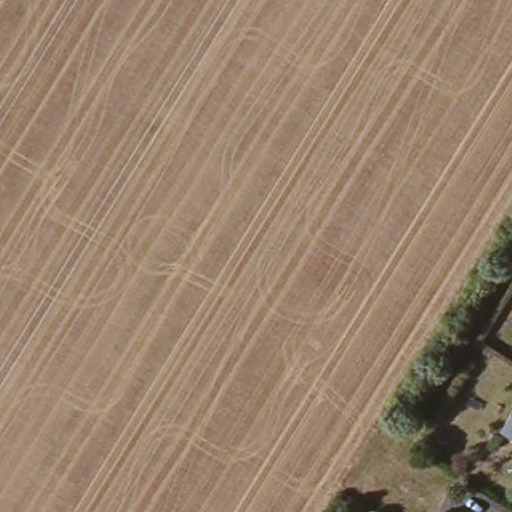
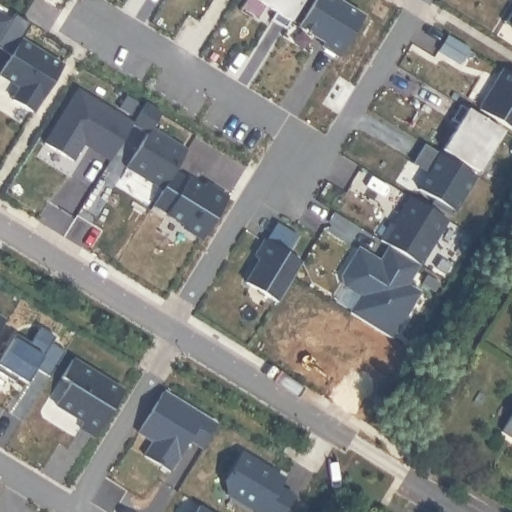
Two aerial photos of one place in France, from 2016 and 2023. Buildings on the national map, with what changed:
new [(285,29),(270,20),(275,12),(254,0),(302,0),(285,29)]
new [(360,16),(334,60),(319,51),(324,42),(296,27),(312,0),(332,0),(360,16)]
new [(502,26),(512,10),(512,32),(502,26)]
new [(0,32),(0,15),(7,20),(0,32)]
new [(32,113),(12,100),(19,88),(0,77),(0,72),(17,41),(60,67),(32,113)]
new [(501,71),(512,78),(512,131),(477,110),(501,71)]
new [(131,125),(107,161),(80,143),(70,160),(42,144),(76,91),(131,125)]
new [(143,103),(157,113),(149,130),(184,151),(170,174),(160,190),(126,169),(146,134),(131,125),(143,103)]
new [(502,132),(476,173),(441,151),(456,127),(450,123),(458,106),(502,132)]
new [(429,203),(432,200),(417,190),(424,177),(423,170),(410,162),(422,144),(472,177),(447,216),(429,203)]
new [(170,174),(204,193),(207,186),(225,198),(200,240),(180,227),(182,224),(151,204),(170,174)]
new [(348,313),(358,296),(342,285),(341,276),(357,250),(378,263),(388,248),(378,241),(388,225),(391,226),(408,198),(443,220),(402,287),(415,294),(387,338),(348,313)]
new [(258,260),(253,256),(274,224),(294,236),(283,252),(298,262),(275,302),(245,282),(258,260)]
new [(0,323),(0,321),(1,322),(0,323)]
new [(27,344),(37,328),(51,337),(47,343),(62,352),(47,376),(33,367),(24,382),(15,375),(11,380),(0,373),(0,355),(12,334),(27,344)]
new [(121,394),(92,436),(79,426),(81,421),(54,405),(67,384),(59,378),(70,361),(121,394)]
new [(212,425),(200,447),(186,438),(166,470),(143,455),(151,441),(136,432),(160,392),(212,425)]
unchanged [(512,409),(512,433),(502,426),(512,409)]
new [(288,482),(285,487),(297,495),(287,512),(251,512),(222,494),(244,455),(288,482)]
new [(205,512),(200,512),(201,510),(205,512)]

